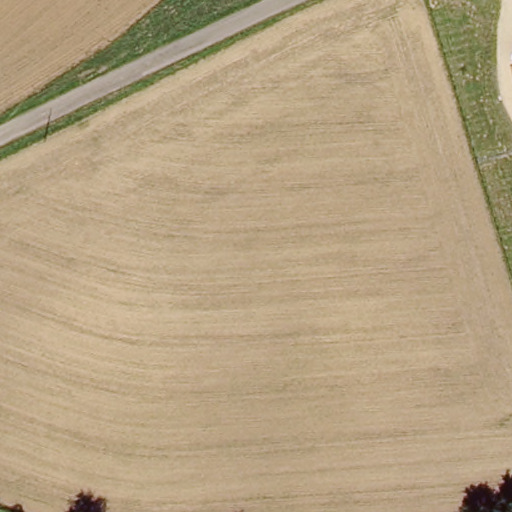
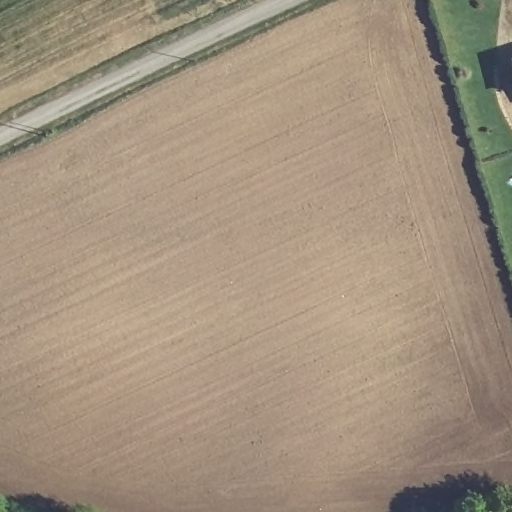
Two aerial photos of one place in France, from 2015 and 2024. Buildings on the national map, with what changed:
unchanged [(511,62),(512,62),(512,65),(511,62)]

